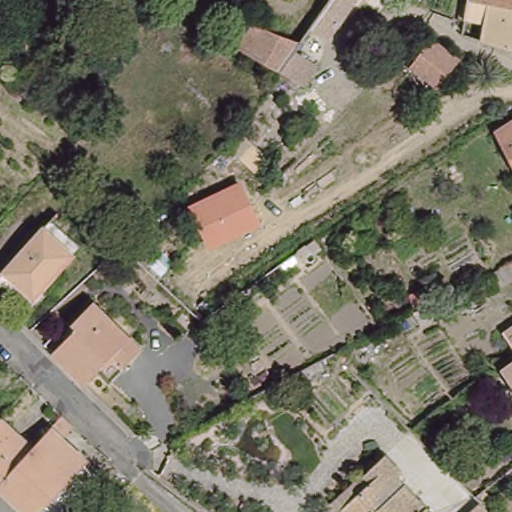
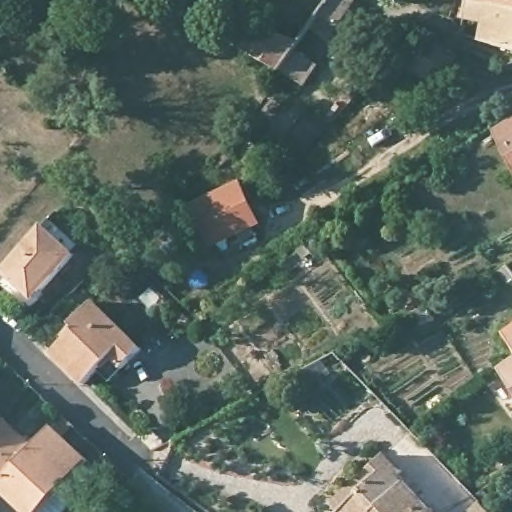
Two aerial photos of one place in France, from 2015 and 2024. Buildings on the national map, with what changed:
unchanged [(306,27),(317,12),(325,0),(350,0),(322,38),(306,27)]
unchanged [(477,43),(481,25),(460,20),(452,19),(455,4),(463,4),(464,0),(512,0),(512,54),(477,43)]
unchanged [(238,22),(228,41),(217,35),(225,20),(238,22)]
unchanged [(319,67),(304,86),(278,75),(238,50),(252,22),(296,46),(319,67)]
unchanged [(453,59),(433,86),(405,65),(425,37),(453,59)]
unchanged [(494,131),(512,120),(512,166),(494,131)]
unchanged [(250,147),(237,160),(228,151),(240,138),(250,147)]
unchanged [(208,250),(188,207),(242,182),(262,226),(208,250)]
unchanged [(0,273),(0,270),(38,227),(52,212),(70,231),(58,245),(68,254),(28,297),(0,273)]
unchanged [(83,382),(50,350),(72,326),(67,321),(90,297),(138,345),(125,361),(110,376),(99,366),(83,382)]
unchanged [(503,335),(512,328),(512,349),(503,335)]
unchanged [(495,372),(512,360),(512,394),(495,372)]
unchanged [(0,485),(0,477),(32,443),(62,410),(77,422),(65,437),(86,458),(37,512),(28,512),(0,485)]
unchanged [(0,477),(0,414),(0,413),(32,443),(0,477)]
unchanged [(328,507),(360,476),(367,469),(382,452),(399,467),(394,475),(431,512),(334,512),(328,507)]
unchanged [(482,487),(487,496),(482,502),(473,494),(482,487)]
unchanged [(479,503),(487,512),(469,512),(479,503)]

